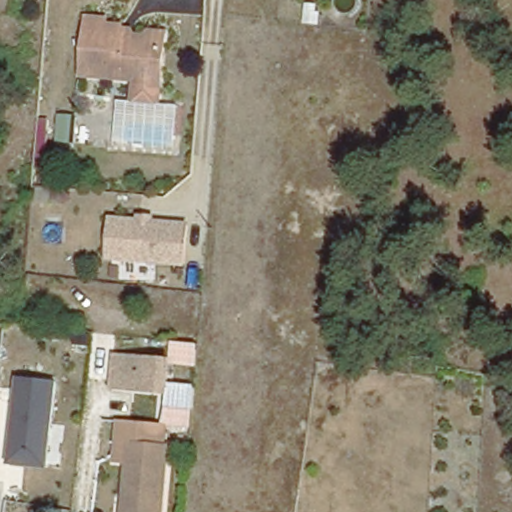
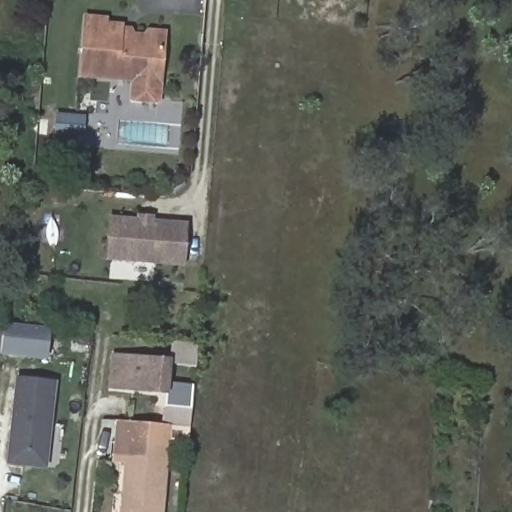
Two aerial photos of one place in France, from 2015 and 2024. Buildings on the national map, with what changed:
unchanged [(304,5),(317,6),(316,13),(319,14),(318,24),(310,23),(303,22),(304,5)]
unchanged [(133,105),(134,83),(76,78),(81,23),(99,25),(99,30),(116,30),(164,35),(163,42),(157,107),(133,105)]
unchanged [(190,224),(186,263),(109,256),(113,216),(190,224)]
new [(13,325),(53,330),(50,355),(10,350),(13,325)]
unchanged [(117,360),(166,365),(165,389),(115,384),(117,360)]
unchanged [(48,469),(7,465),(16,376),(56,380),(48,469)]
unchanged [(169,418),(167,440),(161,512),(125,512),(129,456),(122,456),(116,456),(118,436),(120,414),(161,418),(169,418)]

